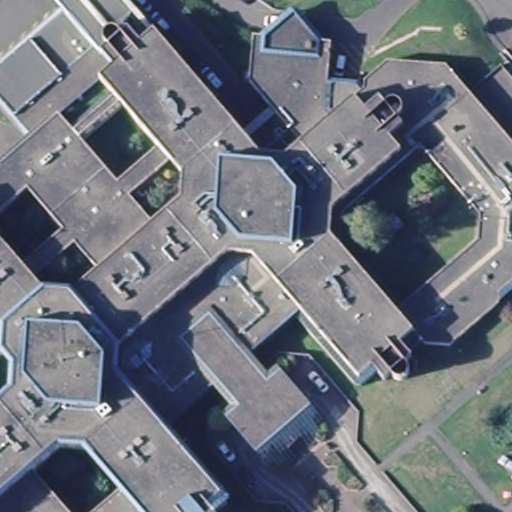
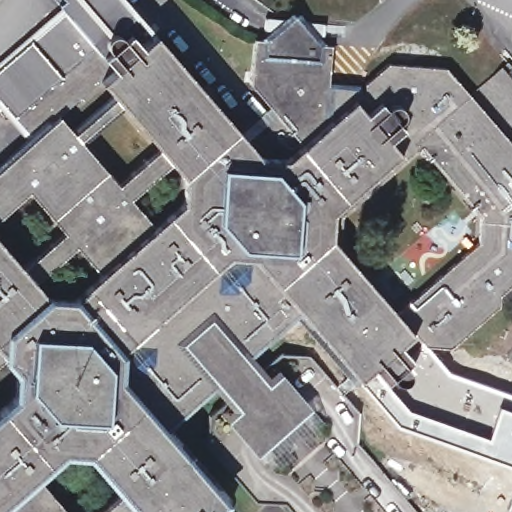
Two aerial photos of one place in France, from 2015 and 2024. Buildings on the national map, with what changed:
unchanged [(26,139),(0,108),(0,59),(61,8),(55,0),(126,0),(215,105),(177,171),(149,220),(144,229),(9,470),(8,471),(0,485),(0,163),(9,155),(26,139)]
unchanged [(9,470),(144,229),(149,220),(177,171),(215,105),(250,43),(251,34),(255,34),(265,35),(292,11),(315,39),(326,40),(323,82),(354,84),(359,90),(362,87),(361,77),(384,59),(443,62),(465,89),(505,57),(512,66),(512,277),(497,290),(496,302),(448,344),(423,343),(419,338),(404,350),(410,358),(404,363),(409,372),(406,378),(402,381),(397,381),(391,376),(384,382),(371,367),(357,379),(297,312),(244,358),(216,383),(160,432),(229,512),(95,512),(112,495),(81,457),(58,457),(36,477),(65,512),(0,512),(0,485),(8,471),(9,470)]
new [(499,405),(488,436),(408,410),(384,382),(391,376),(397,381),(402,381),(406,378),(409,372),(404,363),(410,358),(404,350),(419,338),(423,343),(450,373),(512,395),(512,410),(499,405)]
unchanged [(265,383),(279,371),(309,406),(253,453),(223,417),(236,406),(216,383),(244,358),(265,383)]
new [(397,426),(357,379),(371,367),(384,382),(408,410),(488,436),(499,405),(512,410),(512,466),(397,426)]

